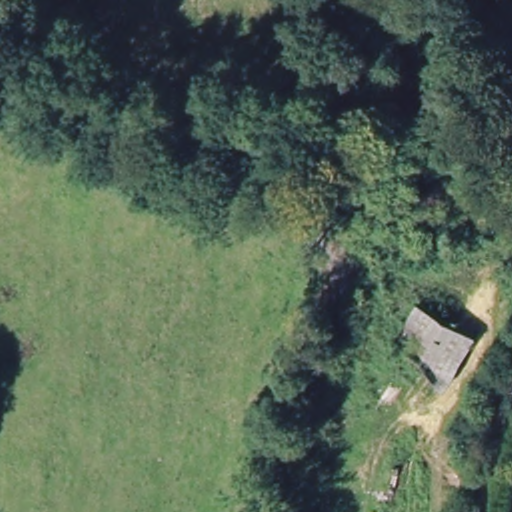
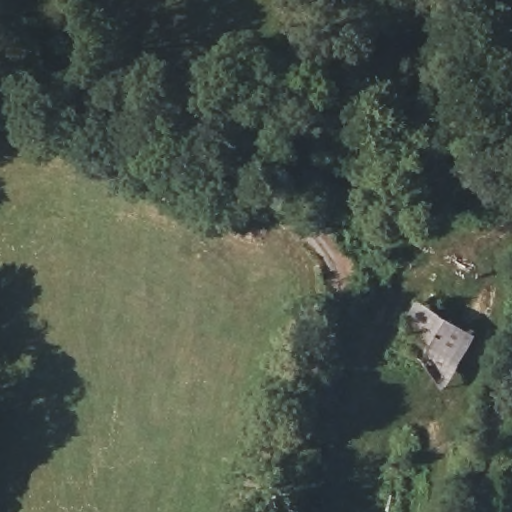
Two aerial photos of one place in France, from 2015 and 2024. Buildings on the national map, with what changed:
unchanged [(417,306),(473,341),(439,392),(384,357),(417,306)]

